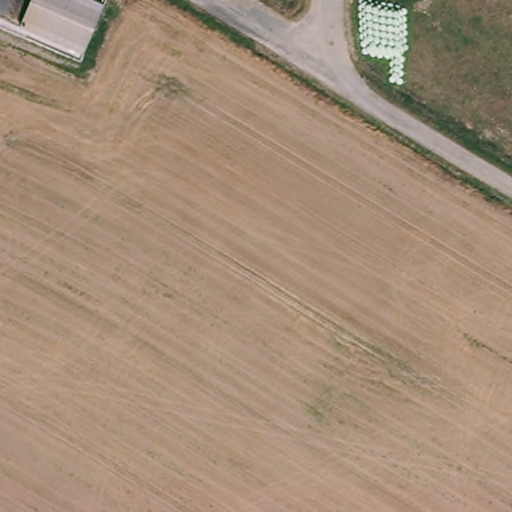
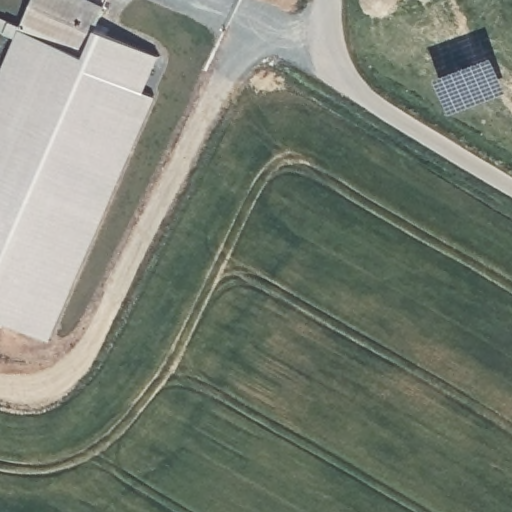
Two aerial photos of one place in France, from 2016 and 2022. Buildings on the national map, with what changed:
unchanged [(103,5),(82,54),(19,26),(31,0),(91,0),(103,5)]
new [(157,56),(142,91),(153,96),(49,339),(0,318),(0,70),(19,26),(82,54),(93,28),(157,56)]

